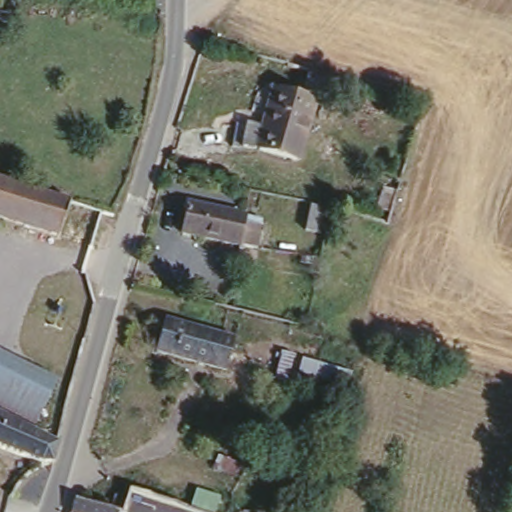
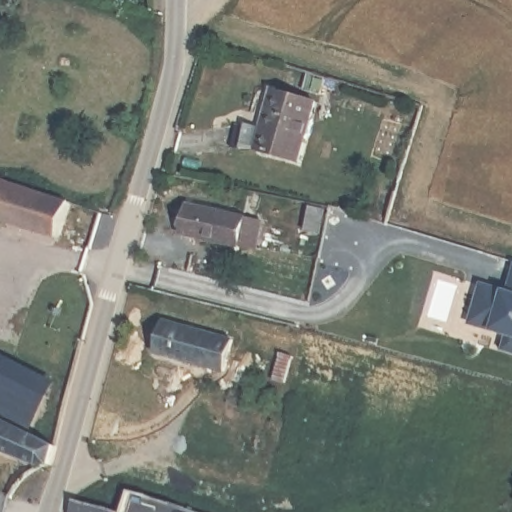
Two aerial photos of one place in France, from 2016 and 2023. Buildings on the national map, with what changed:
unchanged [(269,126),(279,90),(319,103),(300,162),(245,145),(253,121),(269,126)]
unchanged [(0,223),(0,181),(71,205),(59,242),(0,223)]
unchanged [(276,194),(269,217),(255,213),(263,189),(276,194)]
unchanged [(400,195),(391,224),(376,219),(385,190),(400,195)]
unchanged [(173,199),(248,216),(238,247),(165,228),(173,199)]
new [(501,351),(503,337),(491,334),(492,330),(471,325),(480,282),(511,292),(512,288),(512,355),(501,351)]
unchanged [(234,347),(228,376),(159,360),(165,330),(234,347)]
unchanged [(263,368),(270,344),(284,348),(277,373),(263,368)]
unchanged [(342,367),(337,382),(287,367),(294,352),(342,367)]
unchanged [(26,427),(0,414),(0,367),(44,391),(26,427)]
unchanged [(0,414),(26,427),(60,443),(49,468),(0,449),(0,414)]
unchanged [(123,512),(71,512),(68,511),(71,495),(124,510),(123,512)]

